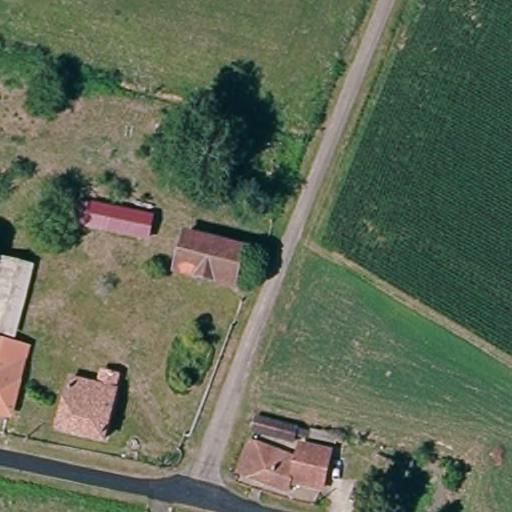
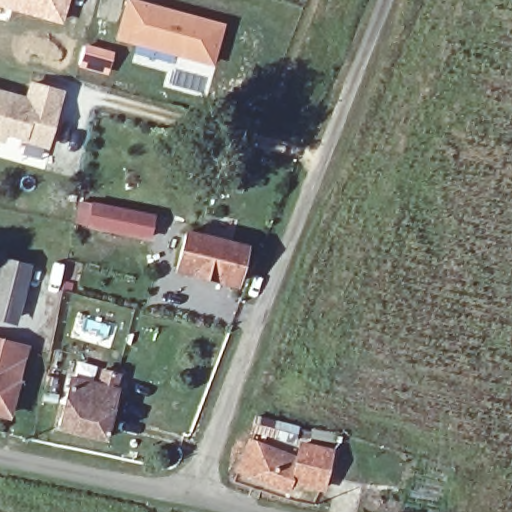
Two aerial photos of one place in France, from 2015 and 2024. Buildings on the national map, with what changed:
new [(62,25),(0,7),(0,0),(69,0),(62,25)]
new [(115,39),(126,0),(136,0),(225,24),(214,65),(115,39)]
new [(85,44),(115,52),(109,76),(78,67),(85,44)]
new [(6,136),(3,143),(0,142),(0,89),(25,95),(30,81),(64,90),(48,149),(6,136)]
unchanged [(75,228),(81,197),(158,214),(154,243),(75,228)]
unchanged [(178,265),(180,257),(187,234),(246,248),(237,279),(178,265)]
unchanged [(27,265),(14,333),(0,331),(0,260),(27,265)]
unchanged [(31,343),(17,407),(0,404),(0,338),(31,343)]
unchanged [(99,389),(102,372),(121,374),(113,438),(63,432),(69,386),(99,389)]
unchanged [(304,437),(334,447),(322,482),(295,472),(291,482),(246,467),(255,439),(299,453),(304,437)]

